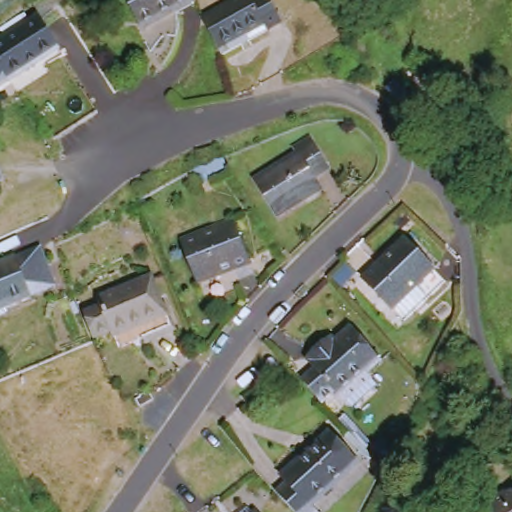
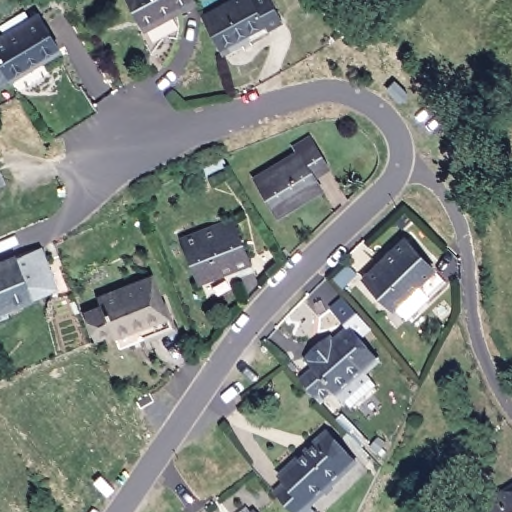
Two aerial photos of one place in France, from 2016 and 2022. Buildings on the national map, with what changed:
unchanged [(121,0),(189,0),(194,9),(177,18),(144,37),(139,30),(121,0)]
unchanged [(202,22),(240,0),(250,0),(271,0),(284,24),(269,32),(224,60),(220,53),(202,22)]
unchanged [(61,55),(10,81),(0,63),(0,41),(42,19),(61,55)]
unchanged [(110,114),(67,140),(52,114),(94,88),(110,114)]
unchanged [(280,220),(260,182),(305,158),(302,151),(317,144),(329,168),(332,175),(319,182),(325,195),(280,220)]
unchanged [(210,169),(222,162),(227,160),(233,171),(228,174),(216,180),(210,169)]
unchanged [(0,184),(0,169),(5,182),(0,184)]
unchanged [(249,267),(197,288),(181,246),(232,225),(249,267)]
unchanged [(379,270),(405,242),(435,271),(397,312),(365,282),(377,268),(379,270)]
unchanged [(41,248),(59,290),(0,314),(0,266),(17,258),(41,248)]
unchanged [(105,308),(102,299),(155,277),(174,328),(123,350),(115,331),(96,340),(87,315),(105,308)]
unchanged [(315,369),(322,363),(312,352),(328,337),(334,343),(350,327),(381,362),(368,373),(342,398),(337,393),(324,405),(302,380),(315,369)]
unchanged [(147,414),(141,405),(155,396),(160,406),(147,414)]
unchanged [(292,486),(286,480),(330,438),(359,469),(314,512),(290,512),(278,498),(292,486)]
unchanged [(512,497),(512,512),(486,512),(512,497)]
unchanged [(250,511),(251,512),(249,512),(250,511)]

